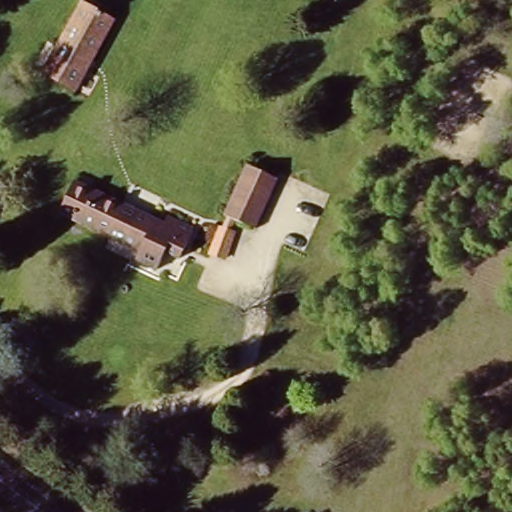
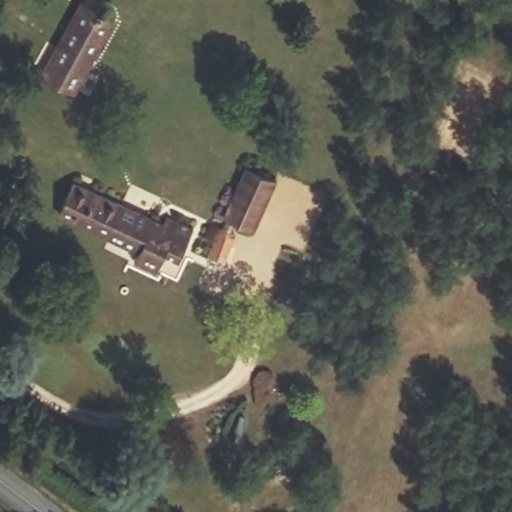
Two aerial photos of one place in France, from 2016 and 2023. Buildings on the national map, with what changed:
unchanged [(82,12),(116,30),(79,98),(44,79),(82,12)]
unchanged [(215,251),(230,215),(225,213),(249,160),(284,176),(261,229),(250,224),(232,259),(215,251)]
unchanged [(176,221),(189,204),(213,217),(195,261),(166,249),(113,226),(72,208),(81,179),(176,221)]
unchanged [(166,249),(157,266),(106,246),(113,226),(166,249)]

